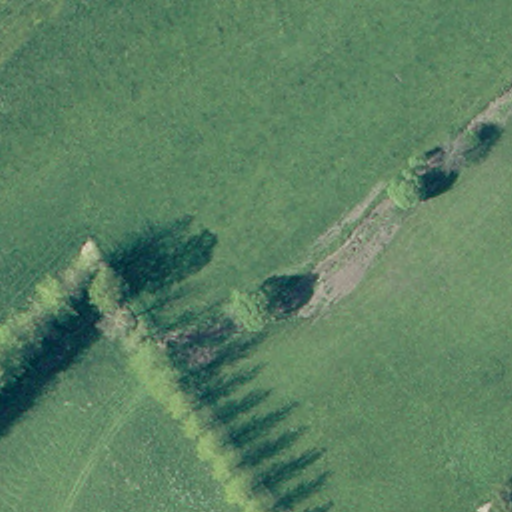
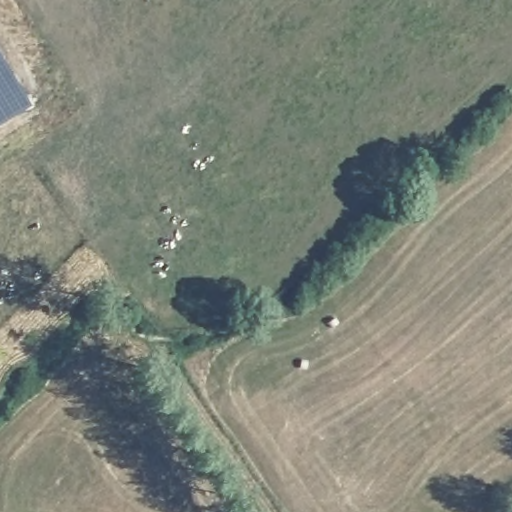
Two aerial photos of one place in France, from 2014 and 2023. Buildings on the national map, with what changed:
new [(0,49),(32,100),(0,119),(0,49)]

